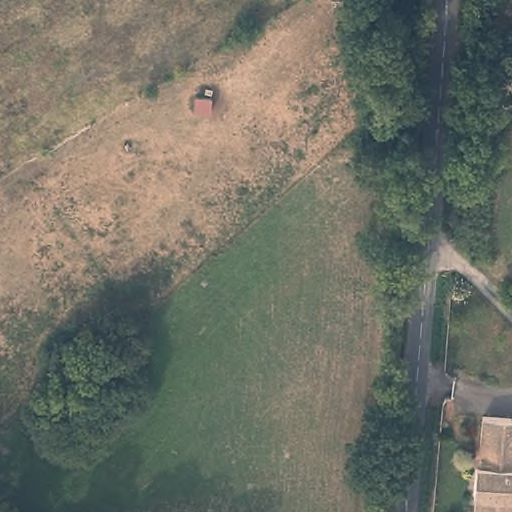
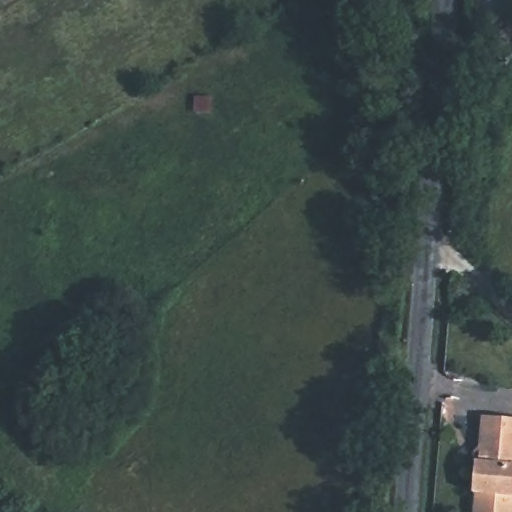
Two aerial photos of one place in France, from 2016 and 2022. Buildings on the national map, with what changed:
unchanged [(473,472),(476,472),(480,426),(512,428),(512,512),(474,512),(475,502),(471,502),(473,472)]

